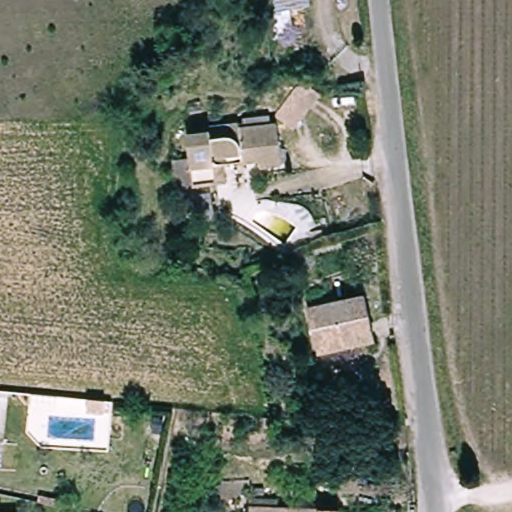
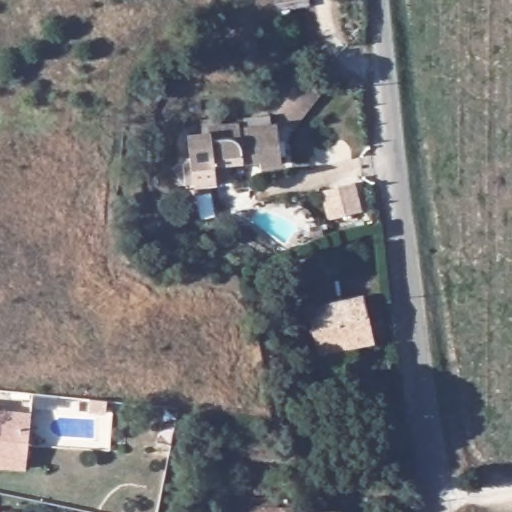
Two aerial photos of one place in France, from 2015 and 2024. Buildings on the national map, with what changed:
unchanged [(311,5),(275,11),(273,0),(310,0),(311,5)]
unchanged [(295,95),(308,87),(321,96),(300,127),(282,114),(295,95)]
unchanged [(189,140),(215,138),(214,125),(242,123),(243,130),(283,127),(287,168),(264,170),(263,165),(218,169),(220,185),(193,188),(192,172),(189,140)]
unchanged [(312,308),(366,298),(375,343),(319,355),(312,308)]
new [(32,413),(25,471),(0,468),(0,410),(32,413)]
unchanged [(252,512),(252,509),(314,512),(252,512)]

